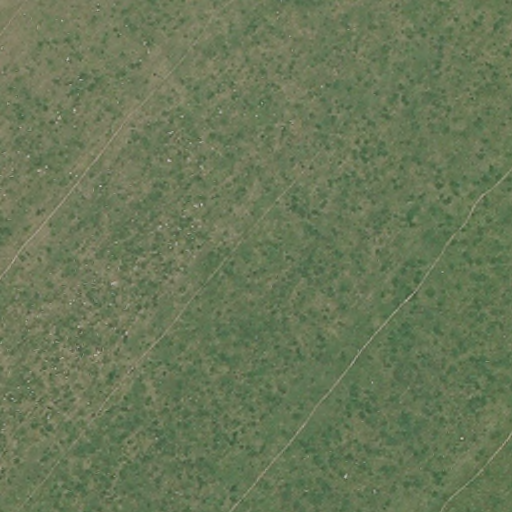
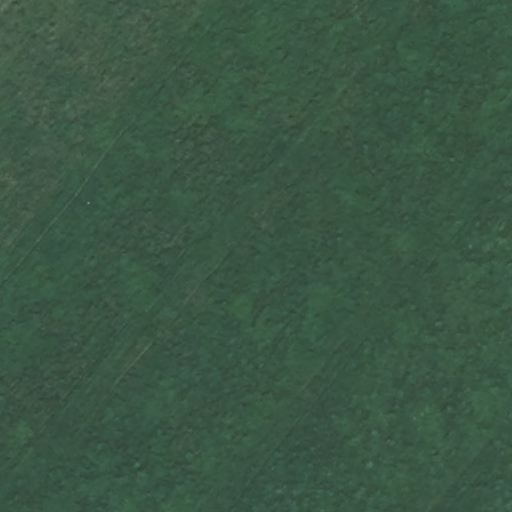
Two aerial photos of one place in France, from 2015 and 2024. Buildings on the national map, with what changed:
[]

